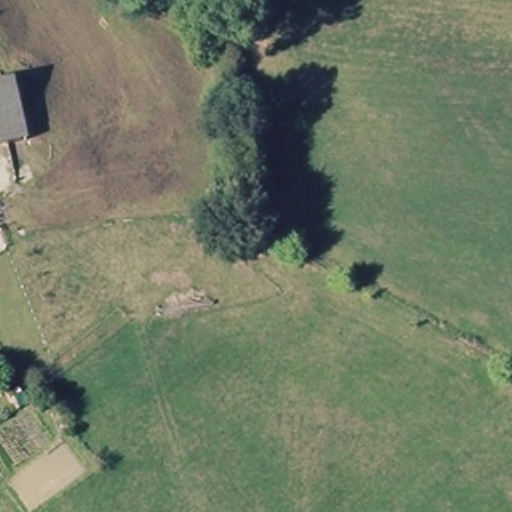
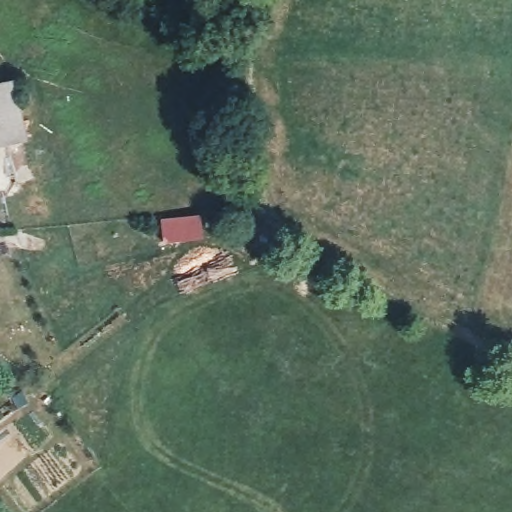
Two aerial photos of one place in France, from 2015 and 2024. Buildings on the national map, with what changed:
unchanged [(34,135),(0,145),(0,82),(18,77),(34,135)]
new [(201,214),(203,239),(163,242),(160,218),(201,214)]

